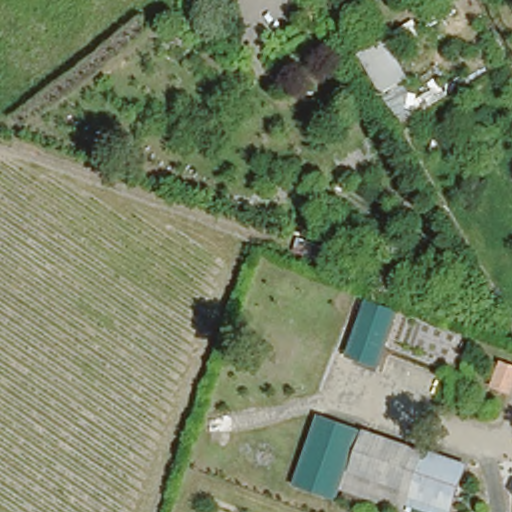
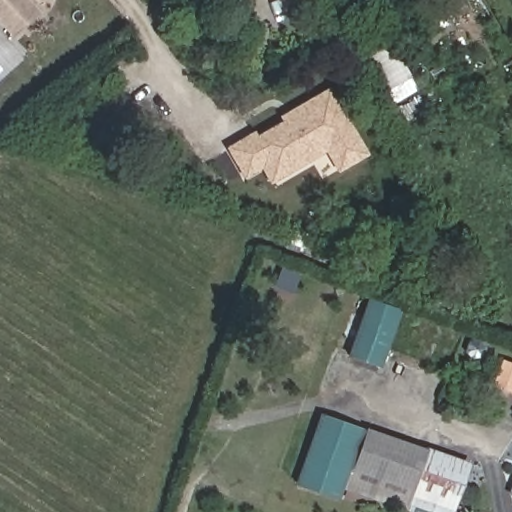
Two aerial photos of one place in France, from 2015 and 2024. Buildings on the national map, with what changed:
new [(28,0),(40,13),(11,38),(0,26),(0,0),(28,0)]
unchanged [(386,31),(407,74),(382,89),(357,48),(386,31)]
new [(254,130),(257,135),(281,121),(278,116),(327,88),(367,154),(337,173),(325,152),(270,184),(261,169),(244,179),(226,148),(254,130)]
unchanged [(403,311),(381,369),(345,354),(365,297),(403,311)]
unchanged [(512,361),(512,393),(486,383),(495,356),(512,361)]
unchanged [(341,485),(337,499),(292,483),(321,412),(363,424),(341,485)]
unchanged [(363,424),(468,459),(454,512),(445,512),(341,485),(363,424)]

